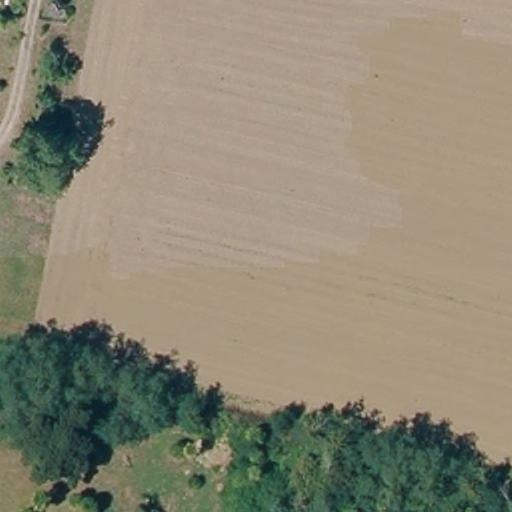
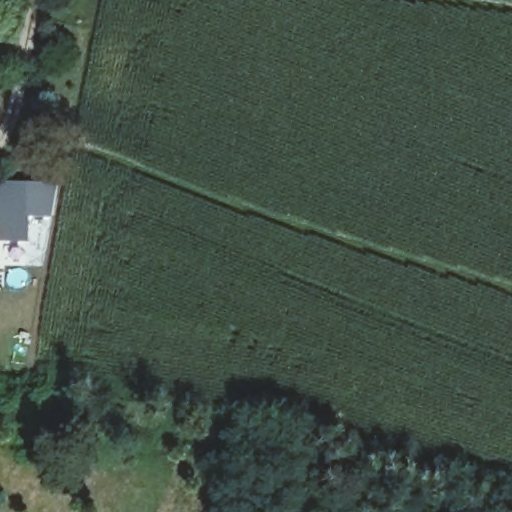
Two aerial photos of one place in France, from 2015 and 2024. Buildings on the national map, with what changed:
new [(0,181),(59,182),(51,216),(29,215),(29,241),(0,242),(0,181)]

